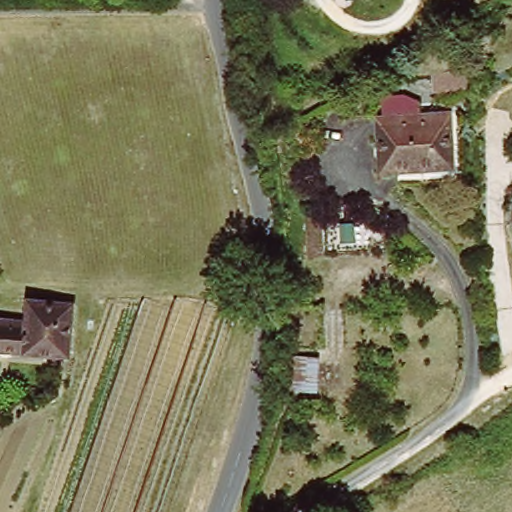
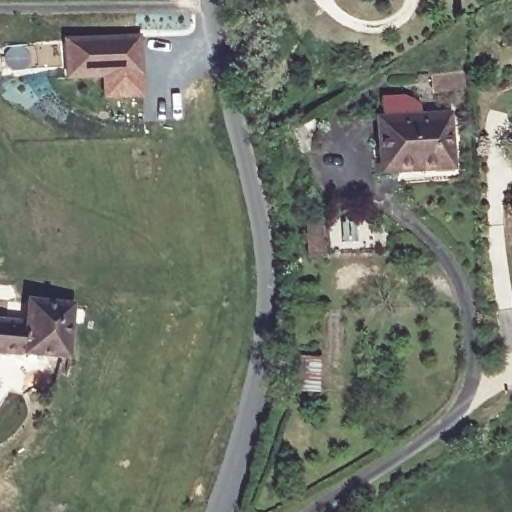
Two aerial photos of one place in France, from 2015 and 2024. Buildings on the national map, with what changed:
new [(84,76),(63,77),(61,38),(136,34),(137,51),(134,51),(134,58),(138,58),(140,93),(101,96),(86,97),(84,76)]
unchanged [(433,74),(444,72),(470,69),(471,87),(445,90),(435,91),(433,74)]
unchanged [(454,115),(457,167),(451,168),(385,172),(381,120),(387,120),(385,99),(407,98),(424,104),(424,117),(449,115),(454,115)]
unchanged [(299,125),(311,147),(299,154),(288,132),(299,125)]
unchanged [(353,229),(369,227),(371,255),(308,257),(306,220),(353,218),(353,229)]
unchanged [(25,297),(76,305),(71,361),(21,354),(0,353),(0,318),(17,320),(25,297)]
unchanged [(286,388),(288,357),(317,360),(316,390),(286,388)]

